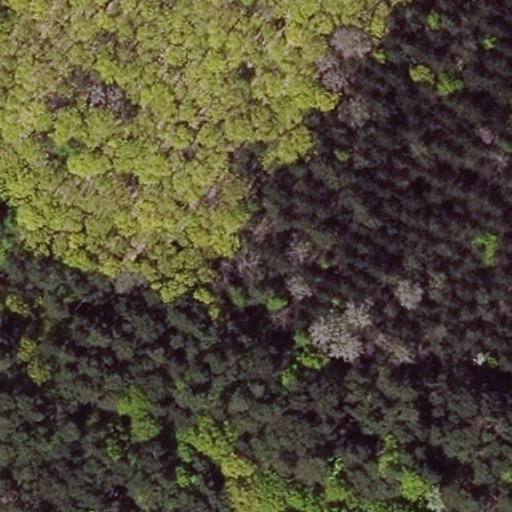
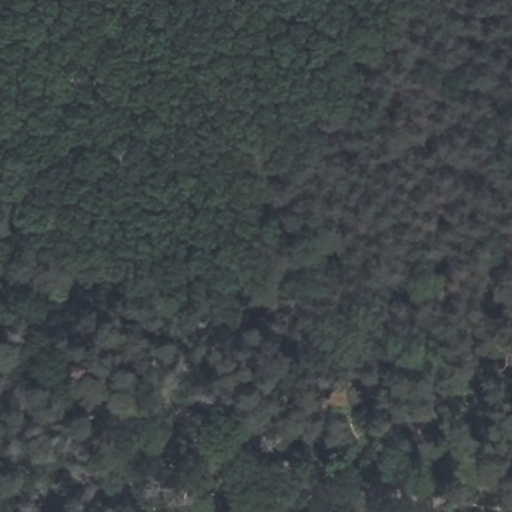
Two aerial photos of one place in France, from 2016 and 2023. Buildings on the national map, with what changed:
[]

